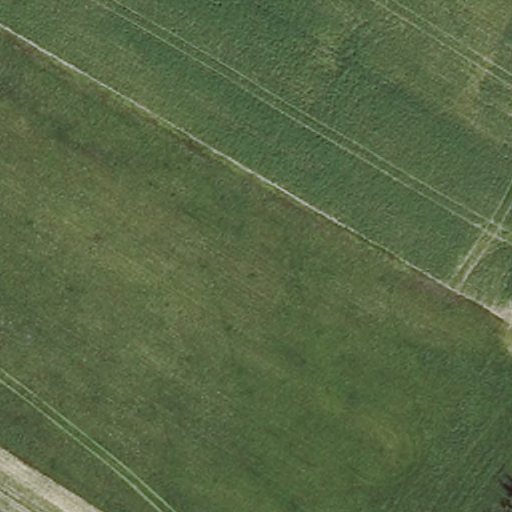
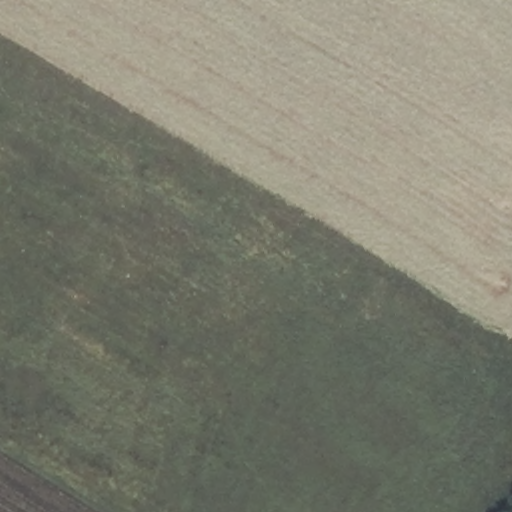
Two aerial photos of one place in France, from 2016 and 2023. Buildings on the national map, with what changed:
[]

